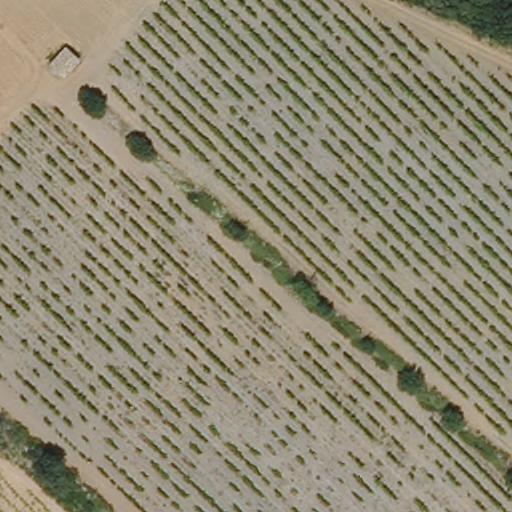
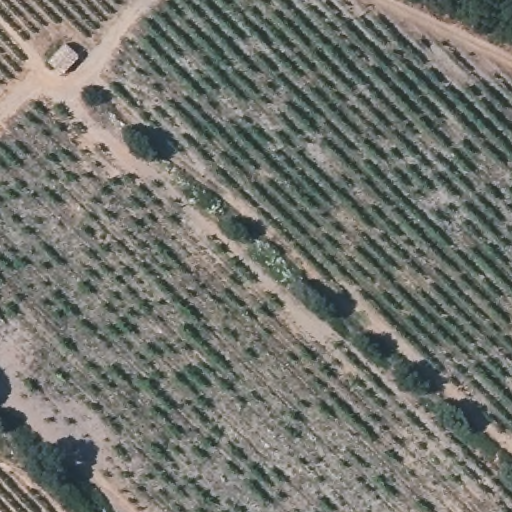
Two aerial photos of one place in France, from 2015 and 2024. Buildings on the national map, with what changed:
unchanged [(83,52),(60,79),(43,64),(69,36),(83,52)]

